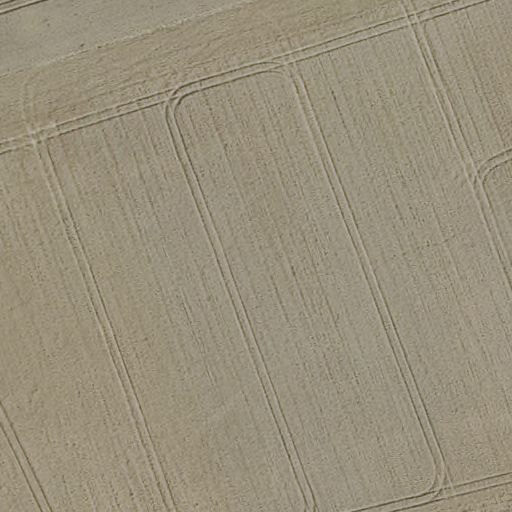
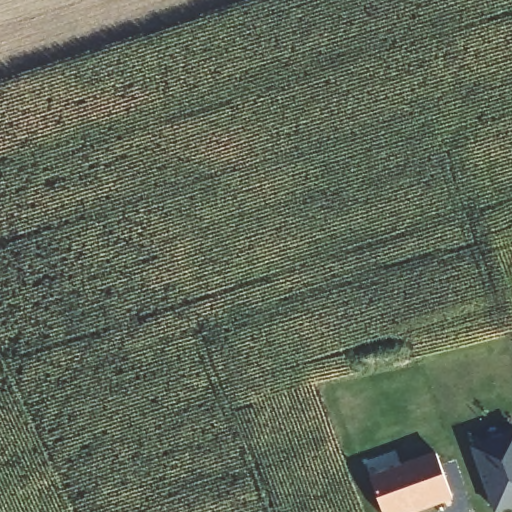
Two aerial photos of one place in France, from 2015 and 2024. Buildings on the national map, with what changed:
new [(472,447),(512,432),(512,509),(503,512),(494,512),(472,447)]
new [(418,512),(384,512),(370,476),(437,452),(453,499),(418,512)]

